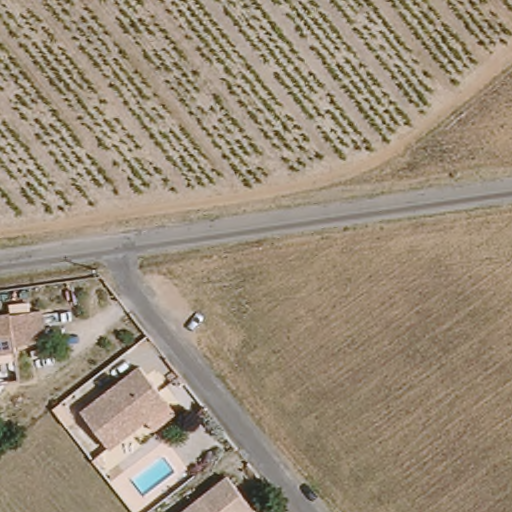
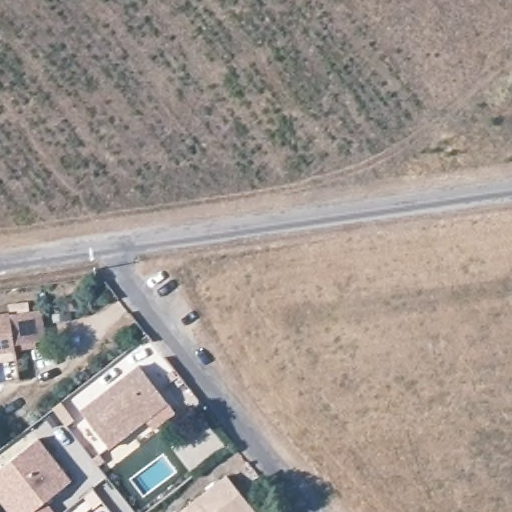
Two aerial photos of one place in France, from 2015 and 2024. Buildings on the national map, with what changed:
unchanged [(8,318),(34,314),(38,343),(12,347),(13,351),(0,353),(0,315),(8,314),(8,318)]
unchanged [(143,423),(115,443),(88,406),(139,369),(158,395),(166,406),(143,423)]
new [(48,499),(58,512),(11,512),(0,498),(0,468),(39,436),(74,482),(48,499)]
unchanged [(261,512),(169,512),(230,469),(261,512)]
new [(90,512),(87,512),(88,511),(90,512)]

